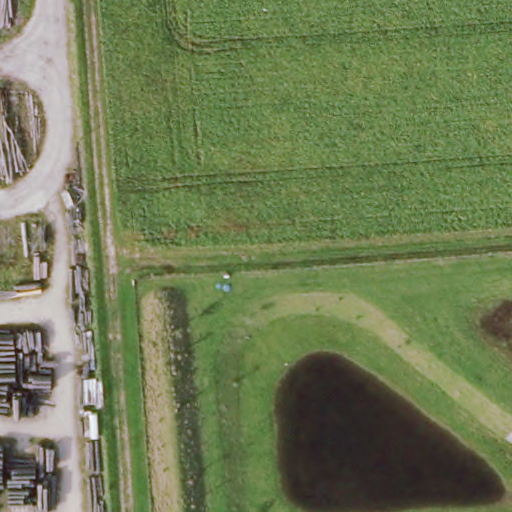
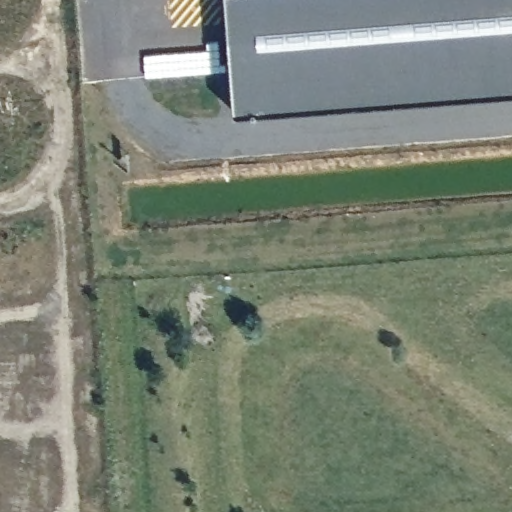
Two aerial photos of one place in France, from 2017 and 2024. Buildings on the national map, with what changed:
new [(226,0),(512,0),(512,88),(235,109),(226,0)]

